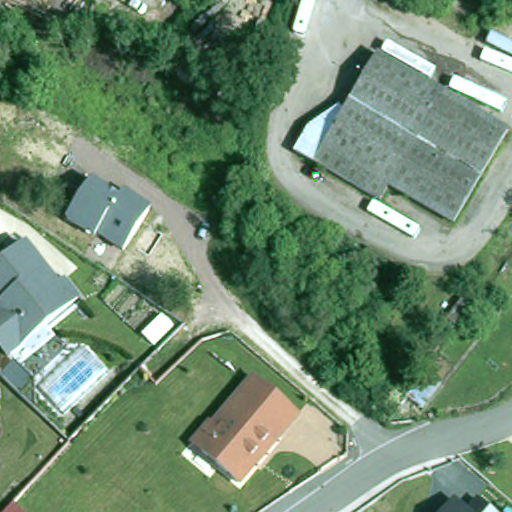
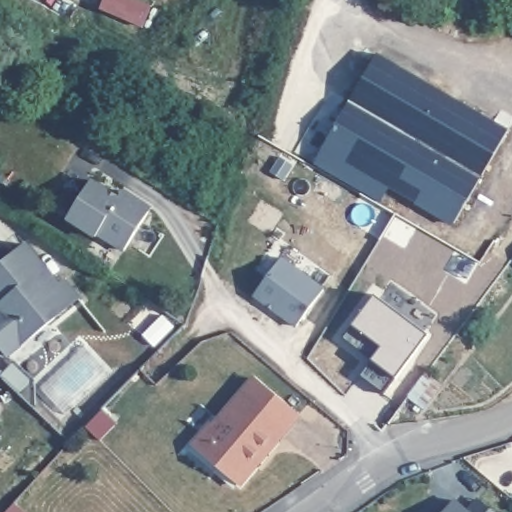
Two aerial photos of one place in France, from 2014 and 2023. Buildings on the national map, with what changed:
unchanged [(344,109),(375,56),(458,103),(418,171),(328,112),(336,105),(344,109)]
unchanged [(453,226),(441,219),(402,197),(418,171),(458,103),(505,130),(508,132),(453,226)]
unchanged [(402,197),(386,187),(377,200),(293,152),(307,128),(328,112),(418,171),(402,197)]
unchanged [(117,197),(123,190),(149,209),(116,255),(93,240),(91,243),(62,224),(93,181),(117,197)]
unchanged [(62,282),(67,278),(81,296),(12,353),(0,339),(0,305),(3,302),(0,299),(0,265),(26,241),(62,282)]
new [(325,287),(294,329),(251,296),(282,256),(325,287)]
new [(383,394),(359,375),(370,360),(341,338),(375,294),(428,335),(383,394)]
demolished [(465,305),(475,312),(460,334),(450,327),(465,305)]
unchanged [(426,416),(410,405),(427,382),(443,394),(426,416)]
unchanged [(245,488),(207,456),(198,448),(215,428),(218,430),(259,383),(303,420),(282,444),(260,470),(245,488)]
unchanged [(494,512),(441,512),(451,498),(462,505),(471,495),(494,512)]

